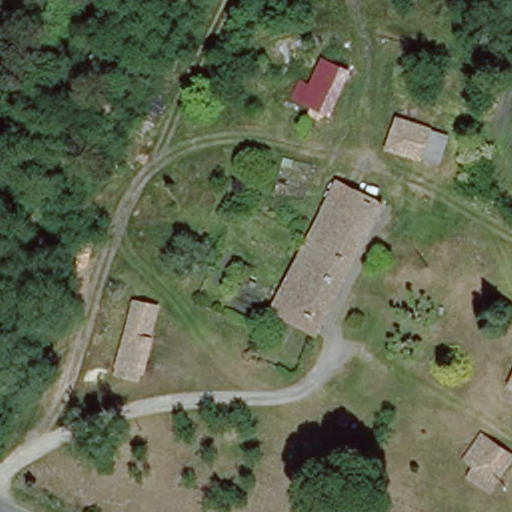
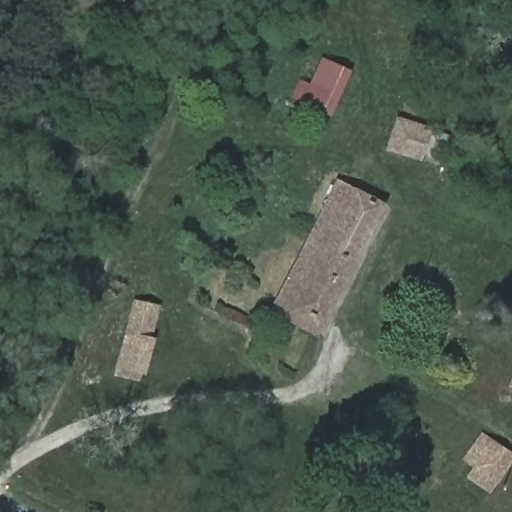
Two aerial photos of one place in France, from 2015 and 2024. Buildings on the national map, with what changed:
unchanged [(356,74),(340,112),(328,106),(324,117),(308,110),(312,102),(305,97),(320,59),(356,74)]
unchanged [(435,134),(423,170),(411,166),(413,162),(394,155),(403,130),(409,132),(412,126),(435,134)]
unchanged [(277,177),(269,191),(256,185),(263,170),(277,177)]
unchanged [(381,205),(318,337),(274,317),(333,181),(381,205)]
unchanged [(155,316),(136,383),(119,377),(128,342),(121,338),(128,309),(155,316)]
unchanged [(510,452),(489,492),(465,476),(473,462),(467,457),(479,433),(510,452)]

